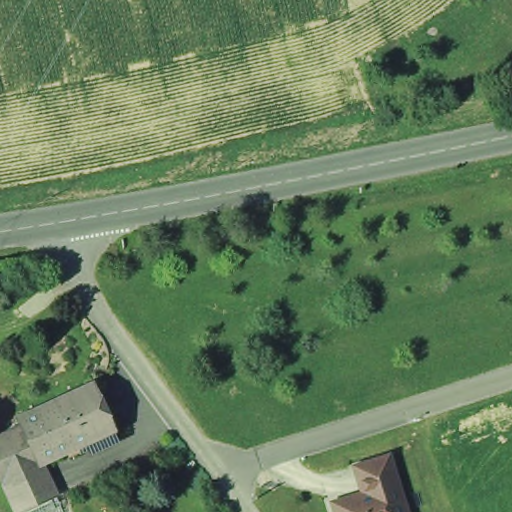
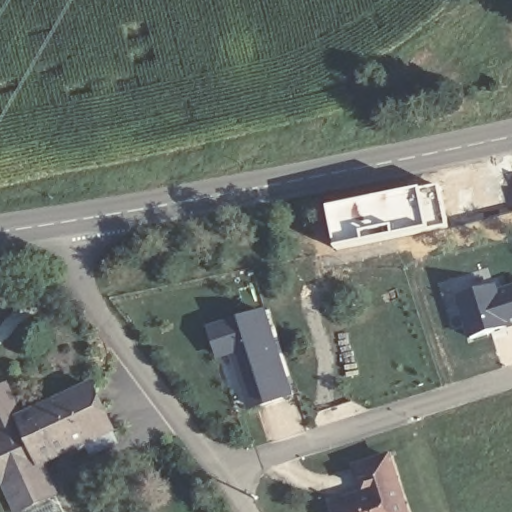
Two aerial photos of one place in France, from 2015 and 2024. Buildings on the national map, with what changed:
new [(439,185),(449,227),(336,249),(327,207),(439,185)]
new [(467,337),(456,299),(495,287),(496,292),(512,289),(512,326),(467,337)]
new [(267,309),(295,398),(249,412),(231,356),(217,360),(209,328),(267,309)]
unchanged [(16,421),(86,389),(111,443),(88,453),(84,443),(37,464),(51,494),(11,512),(10,512),(0,491),(0,436),(18,426),(16,421)]
unchanged [(359,491),(350,464),(390,449),(409,512),(333,512),(330,502),(359,491)]

